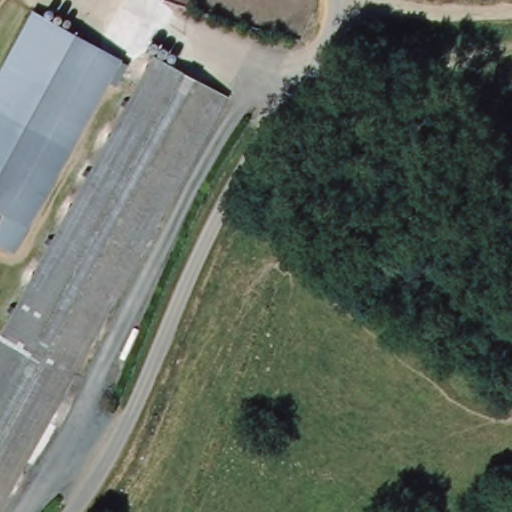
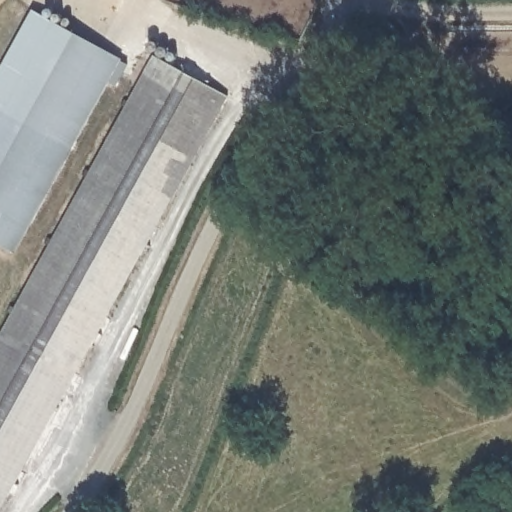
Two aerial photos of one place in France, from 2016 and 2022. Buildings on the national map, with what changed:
unchanged [(31,231),(0,214),(0,74),(36,8),(124,56),(31,231)]
unchanged [(3,512),(0,512),(0,338),(38,271),(147,67),(224,107),(3,512)]

